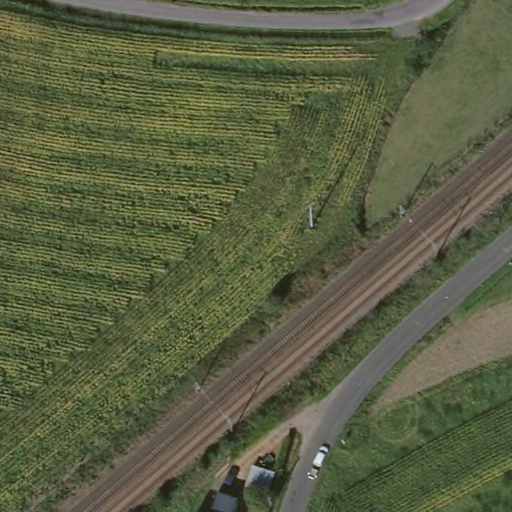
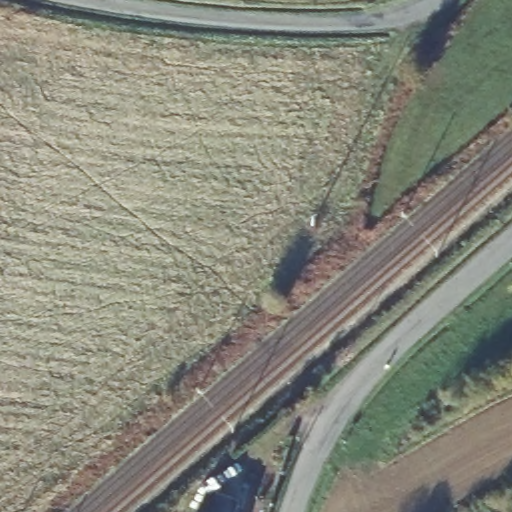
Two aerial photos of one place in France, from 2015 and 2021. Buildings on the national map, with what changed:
unchanged [(217,496),(238,503),(236,512),(212,512),(217,496)]

